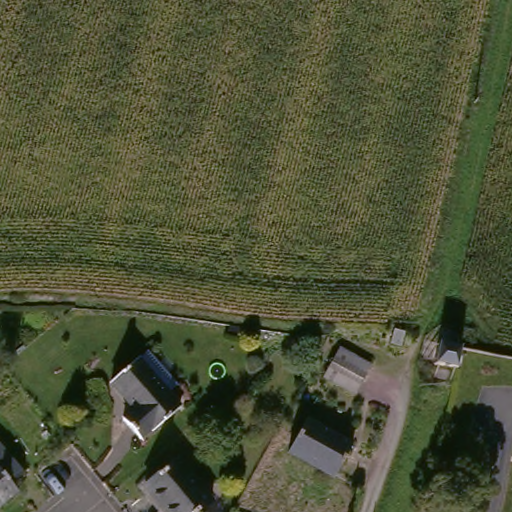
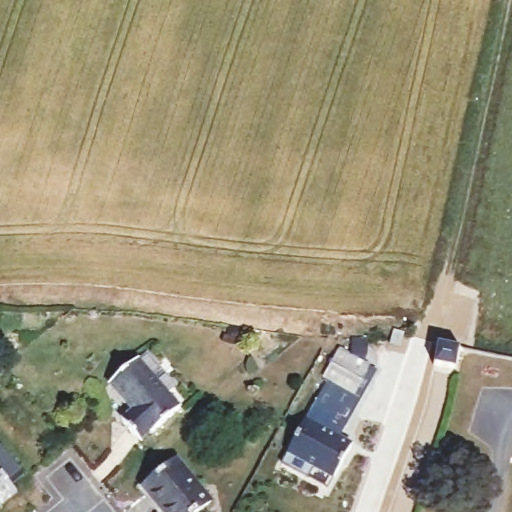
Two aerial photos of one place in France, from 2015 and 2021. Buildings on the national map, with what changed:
unchanged [(396,351),(386,348),(387,343),(390,334),(400,337),(398,343),(396,351)]
unchanged [(452,373),(430,369),(434,347),(456,351),(452,373)]
unchanged [(145,431),(143,430),(132,441),(114,421),(125,410),(101,384),(127,360),(128,361),(138,351),(169,384),(158,394),(171,407),(145,431)]
unchanged [(350,399),(319,382),(335,353),(366,370),(350,399)]
unchanged [(330,482),(284,457),(302,424),(348,449),(330,482)]
unchanged [(207,491),(193,503),(201,512),(147,512),(145,510),(158,499),(139,477),(173,449),(207,491)]
unchanged [(2,494),(8,502),(0,509),(0,467),(14,484),(2,494)]

